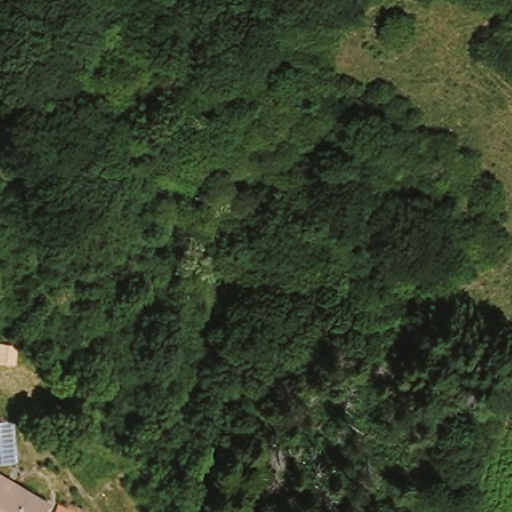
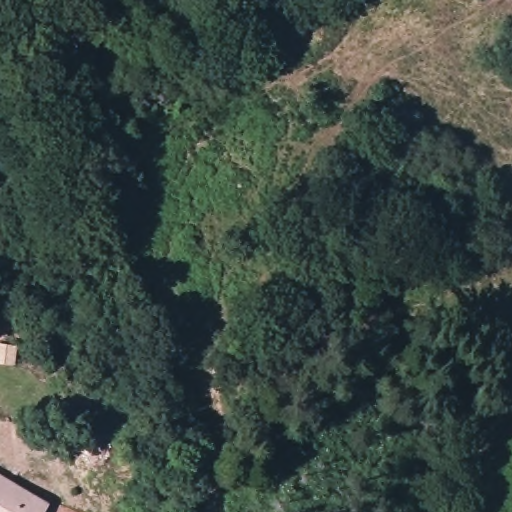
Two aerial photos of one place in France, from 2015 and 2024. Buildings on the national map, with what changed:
unchanged [(0,471),(50,501),(43,512),(0,512),(0,471)]

